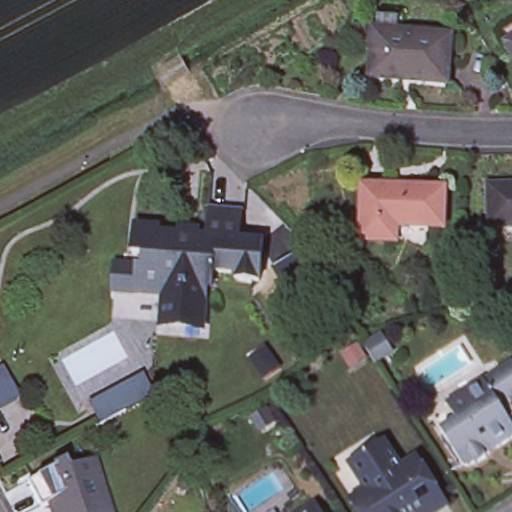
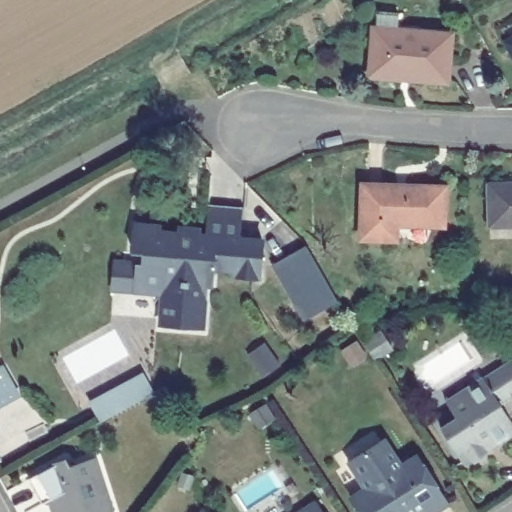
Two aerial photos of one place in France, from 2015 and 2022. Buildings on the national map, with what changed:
unchanged [(509,36),(500,20),(512,14),(512,41),(509,36)]
unchanged [(452,27),(449,73),(375,68),(377,22),(452,27)]
unchanged [(375,175),(452,176),(452,210),(405,210),(404,228),(374,228),(375,175)]
unchanged [(492,237),(492,221),(492,177),(512,177),(512,221),(507,221),(507,237),(492,237)]
unchanged [(113,266),(135,268),(142,268),(142,258),(131,257),(133,228),(157,230),(157,235),(205,241),(207,211),(239,213),(237,245),(260,246),(257,283),(232,281),(231,276),(203,274),(199,332),(160,328),(162,298),(132,296),(111,294),(113,266)]
new [(274,264),(310,245),(340,303),(305,322),(274,264)]
unchanged [(390,341),(395,348),(375,361),(372,355),(390,341)]
unchanged [(512,357),(512,389),(511,390),(512,392),(512,407),(506,411),(512,421),(512,427),(486,442),(482,447),(480,451),(469,456),(459,455),(437,422),(454,412),(449,404),(442,394),(460,383),(510,353),(512,357)]
unchanged [(0,402),(0,366),(15,394),(0,402)]
unchanged [(99,400),(97,397),(127,381),(129,384),(139,378),(149,395),(154,392),(163,387),(172,399),(159,406),(150,397),(148,395),(97,423),(88,406),(99,400)]
unchanged [(352,490),(368,481),(352,454),(385,433),(402,423),(418,448),(449,495),(424,512),(418,502),(404,512),(366,512),(364,508),(352,490)]
unchanged [(60,495),(47,502),(34,476),(72,457),(75,464),(91,459),(100,455),(113,491),(120,512),(65,512),(67,509),(60,495)]
unchanged [(318,512),(305,512),(314,506),(318,512)]

